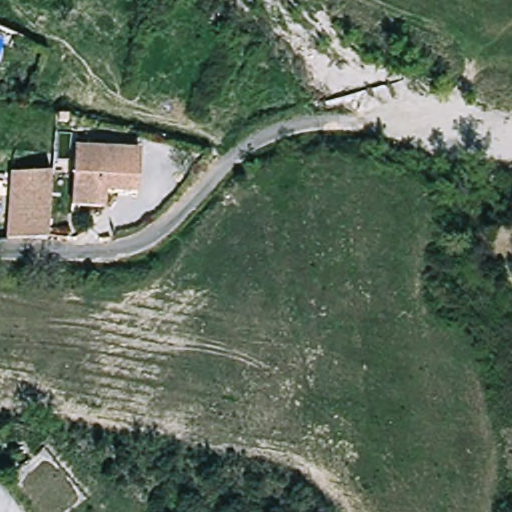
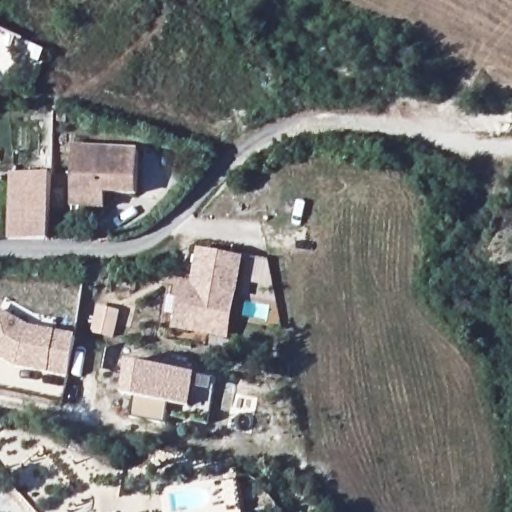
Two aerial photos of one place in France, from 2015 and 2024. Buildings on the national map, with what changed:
unchanged [(77,211),(78,196),(80,152),(145,156),(143,200),(110,199),(110,214),(77,211)]
unchanged [(12,240),(17,174),(57,177),(52,244),(12,240)]
new [(230,340),(173,330),(182,282),(191,283),(198,249),(245,258),(230,340)]
new [(121,311),(114,339),(90,333),(97,305),(121,311)]
new [(68,376),(15,368),(0,360),(0,310),(30,327),(76,336),(68,376)]
new [(133,396),(122,395),(129,362),(197,375),(216,380),(205,424),(167,415),(166,423),(130,417),(133,396)]

